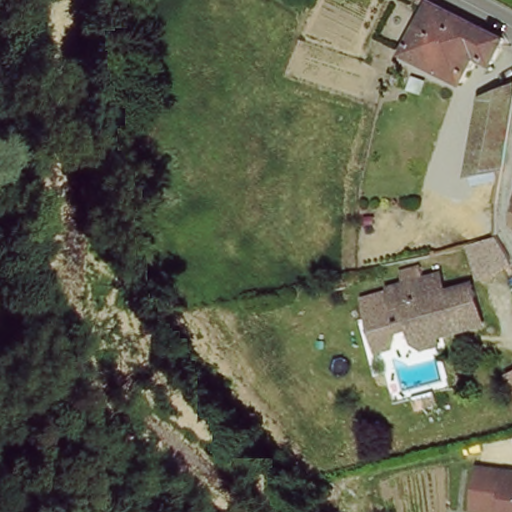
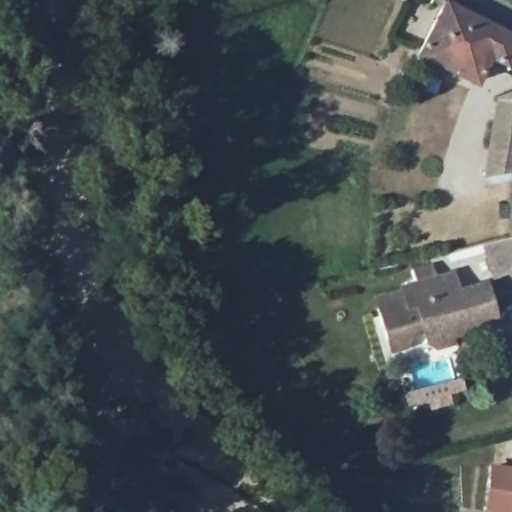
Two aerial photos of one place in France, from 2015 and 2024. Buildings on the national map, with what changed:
unchanged [(443,4),(512,38),(512,55),(505,68),(490,60),(477,87),(418,57),(443,4)]
unchanged [(512,93),(512,166),(486,170),(499,99),(512,93)]
unchanged [(478,245),(507,237),(512,251),(512,271),(488,276),(478,245)]
unchanged [(498,322),(418,353),(413,343),(380,355),(365,298),(406,283),(404,276),(422,272),(426,282),(449,276),(455,291),(486,285),(498,322)]
unchanged [(512,512),(494,512),(499,475),(512,477),(512,512)]

